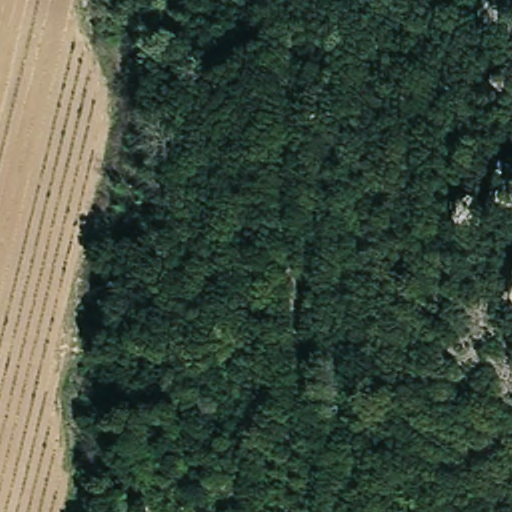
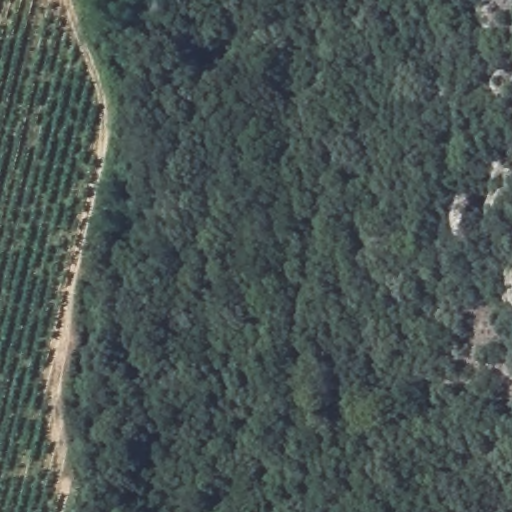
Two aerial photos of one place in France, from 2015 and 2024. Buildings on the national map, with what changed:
[]

